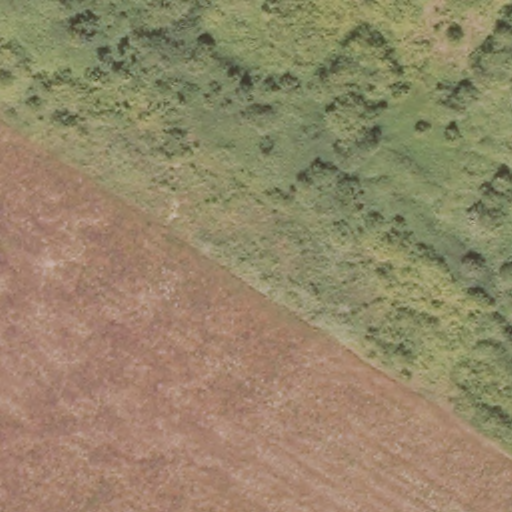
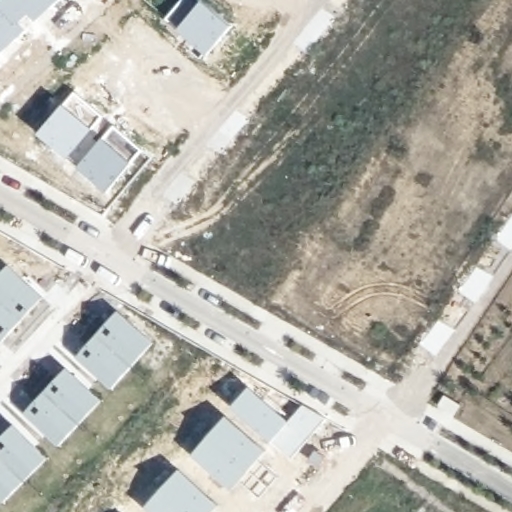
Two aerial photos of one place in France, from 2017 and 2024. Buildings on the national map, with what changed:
new [(32,14),(23,21),(29,29),(0,56),(0,2),(2,0),(60,0),(38,20),(32,14)]
new [(209,54),(206,52),(203,56),(194,49),(199,44),(179,28),(168,19),(183,0),(204,0),(233,25),(209,54)]
new [(74,91),(103,115),(93,129),(103,138),(113,126),(142,150),(133,161),(108,191),(79,166),(81,164),(70,155),(70,157),(39,133),(63,103),(74,91)]
new [(44,297),(3,342),(0,339),(0,274),(9,264),(44,297)]
new [(155,340),(114,387),(78,356),(118,309),(155,340)]
new [(102,399),(59,446),(25,412),(67,367),(102,399)]
new [(289,419),(304,404),(326,418),(291,458),(273,441),(233,407),(249,386),(289,419)]
new [(269,451),(260,459),(277,476),(260,497),(243,481),(234,491),(193,454),(226,414),(269,451)]
new [(48,457),(4,502),(0,497),(0,437),(13,424),(48,457)]
new [(221,504),(213,512),(150,512),(145,507),(181,469),(221,504)]

